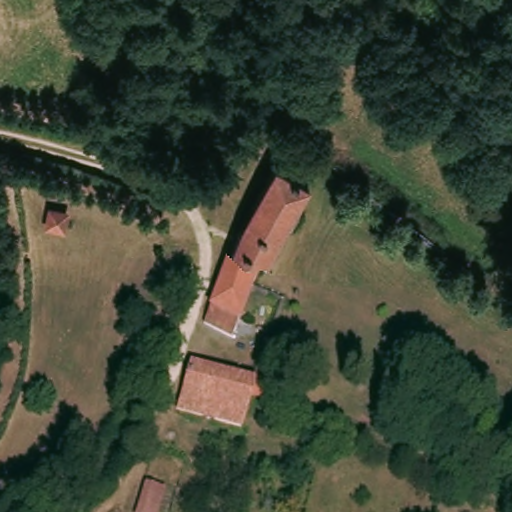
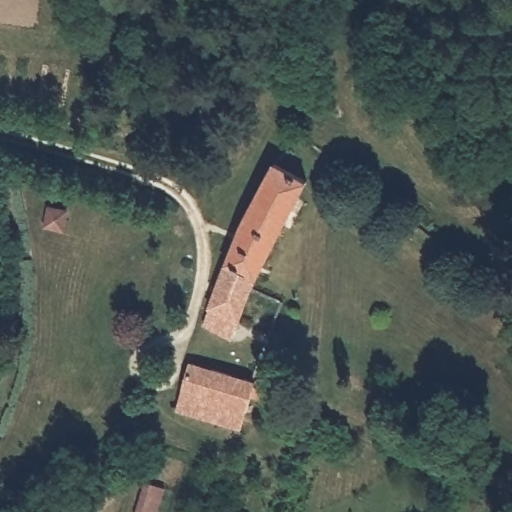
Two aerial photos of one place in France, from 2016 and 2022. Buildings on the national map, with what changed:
unchanged [(293,174),(278,205),(280,206),(288,209),(281,224),(275,222),(273,221),(269,232),(247,287),(228,337),(201,327),(226,231),(260,157),(293,174)]
unchanged [(209,417),(215,397),(185,387),(186,384),(191,362),(192,357),(251,377),(256,378),(261,380),(259,383),(256,393),(247,390),(242,405),(238,403),(232,425),(209,417)]

